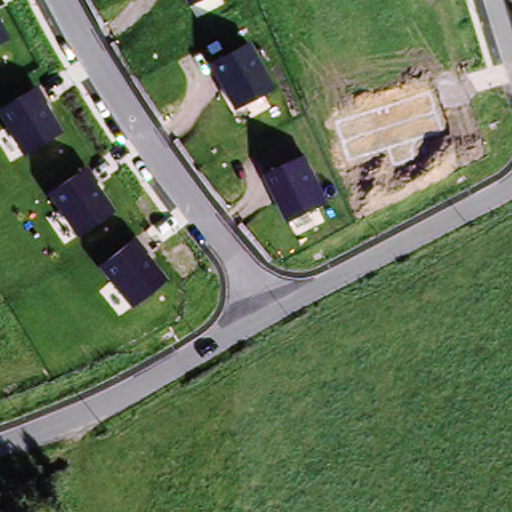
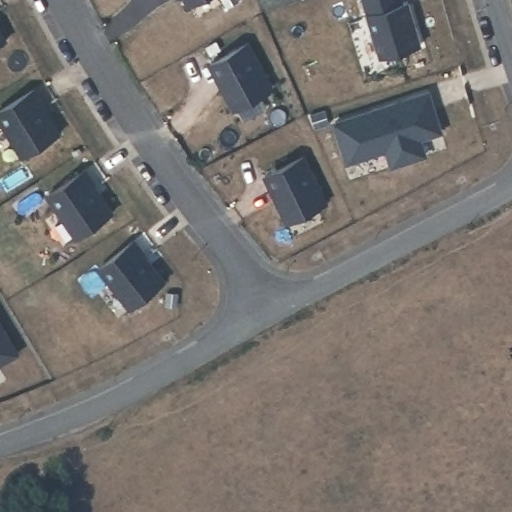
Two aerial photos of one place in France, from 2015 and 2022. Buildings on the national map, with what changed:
unchanged [(190,8),(185,0),(202,0),(190,8)]
new [(403,4),(409,3),(422,47),(377,60),(359,0),(402,0),(403,4)]
unchanged [(0,43),(0,20),(10,38),(0,43)]
unchanged [(275,87),(234,111),(210,63),(249,42),(275,87)]
unchanged [(24,156),(0,118),(0,108),(34,86),(64,132),(24,156)]
new [(444,131),(422,140),(426,155),(392,166),(385,150),(345,162),(332,121),(430,89),(444,131)]
unchanged [(330,204),(287,224),(262,174),(305,154),(330,204)]
unchanged [(77,238),(48,194),(85,168),(115,211),(77,238)]
unchanged [(169,279),(132,309),(100,269),(135,238),(169,279)]
new [(17,356),(0,366),(0,328),(17,356)]

